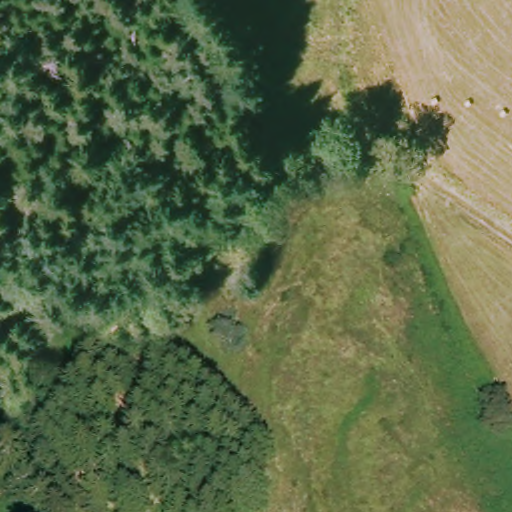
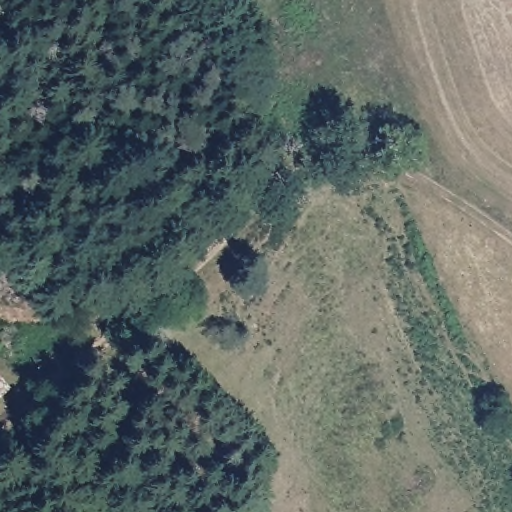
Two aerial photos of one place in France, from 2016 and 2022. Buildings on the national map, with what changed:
unchanged [(0,375),(11,390),(0,397),(0,375)]

